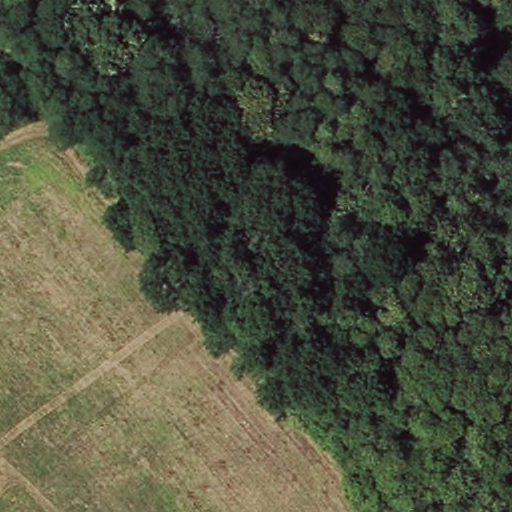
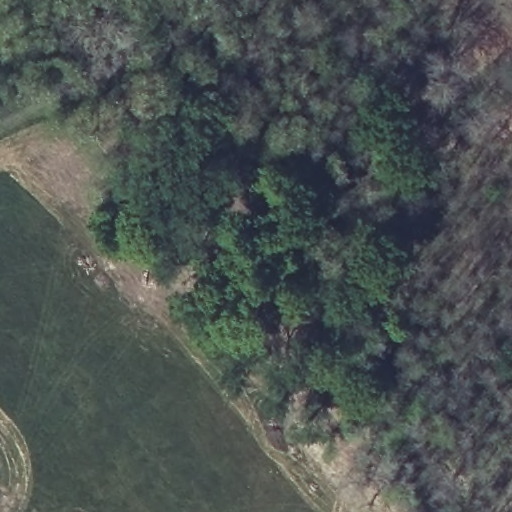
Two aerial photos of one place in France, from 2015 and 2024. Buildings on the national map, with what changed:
[]

